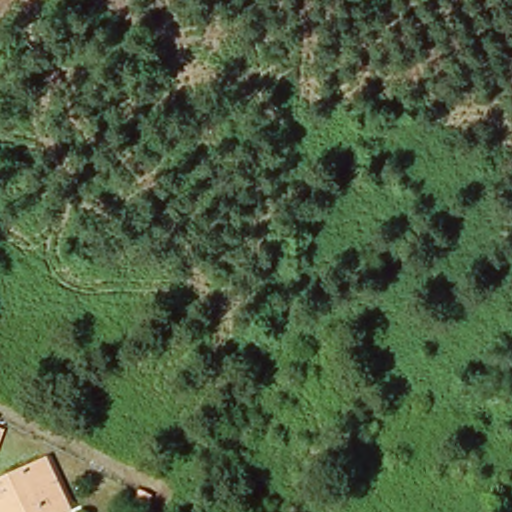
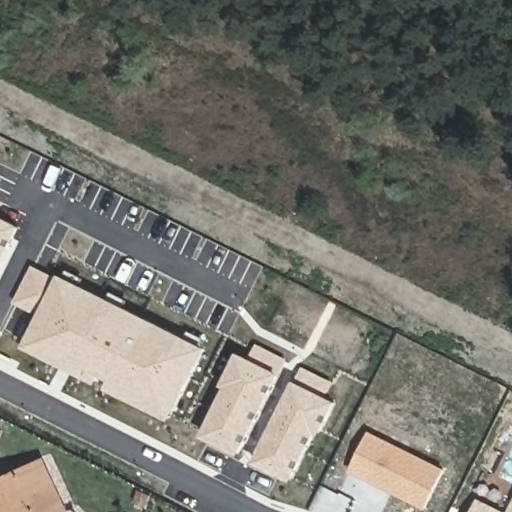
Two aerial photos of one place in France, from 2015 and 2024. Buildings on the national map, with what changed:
new [(20,226),(0,267),(0,216),(20,226)]
new [(207,348),(169,421),(23,348),(38,315),(12,302),(32,266),(56,278),(60,275),(207,348)]
new [(249,358),(256,344),(287,358),(279,375),(238,455),(201,437),(225,388),(221,386),(237,354),(249,358)]
new [(320,435),(317,433),(291,481),(252,463),(295,381),(303,367),(334,382),(324,395),(336,401),(320,435)]
unchanged [(4,431),(0,440),(0,429),(4,431)]
new [(446,470),(425,510),(348,472),(368,431),(446,470)]
unchanged [(17,472),(41,461),(48,473),(64,510),(60,512),(0,512),(0,481),(17,472)]
new [(505,512),(472,512),(479,498),(505,512)]
new [(512,512),(508,512),(512,503),(512,512)]

